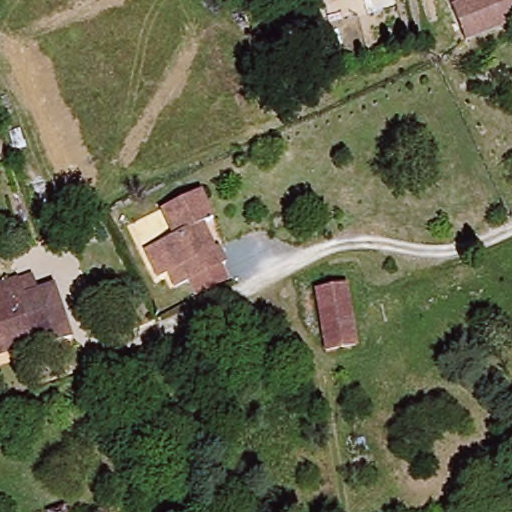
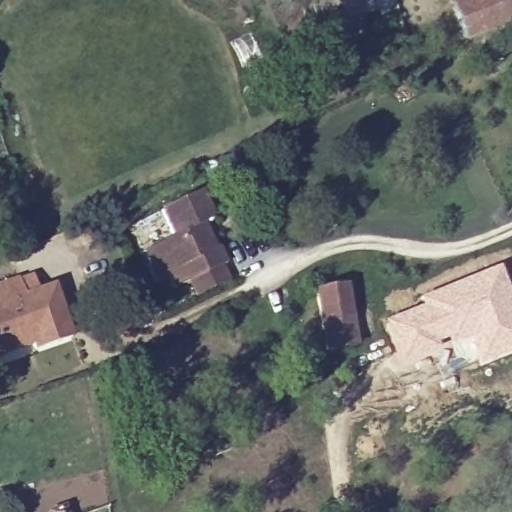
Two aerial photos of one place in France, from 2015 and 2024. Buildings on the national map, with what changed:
unchanged [(451,0),(509,0),(512,8),(512,26),(470,45),(451,0)]
unchanged [(302,45),(300,34),(333,28),(335,39),(302,45)]
unchanged [(175,287),(169,276),(157,280),(145,255),(174,241),(161,214),(200,195),(212,221),(201,227),(214,252),(217,251),(222,263),(175,287)]
new [(420,305),(416,298),(497,265),(512,299),(512,352),(478,366),(477,361),(445,374),(437,354),(400,368),(381,320),(420,305)]
unchanged [(22,293),(52,283),(72,333),(33,348),(28,338),(0,347),(0,281),(15,276),(22,293)]
unchanged [(326,353),(315,293),(346,287),(357,348),(326,353)]
unchanged [(66,507),(68,512),(52,512),(66,507)]

